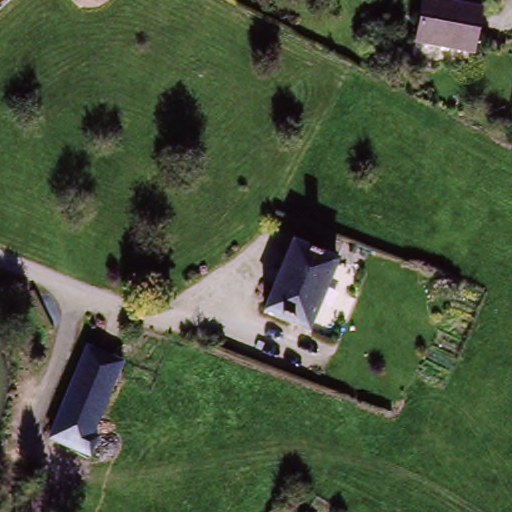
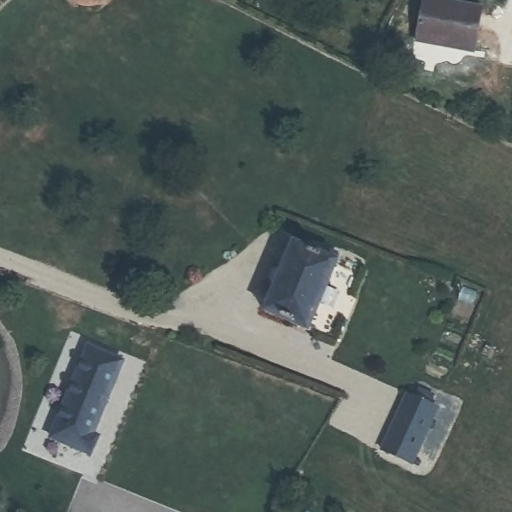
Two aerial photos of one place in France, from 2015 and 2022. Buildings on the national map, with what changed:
unchanged [(0,2),(0,0),(7,0),(0,2)]
unchanged [(66,0),(101,0),(96,7),(73,7),(66,0)]
unchanged [(479,7),(473,46),(417,37),(423,0),(437,0),(479,7)]
unchanged [(294,242),(310,250),(317,240),(337,248),(332,259),(335,261),(300,333),(258,318),(294,242)]
unchanged [(85,347),(113,359),(85,430),(98,437),(87,457),(45,441),(85,347)]
new [(439,407),(411,465),(379,451),(406,393),(439,407)]

